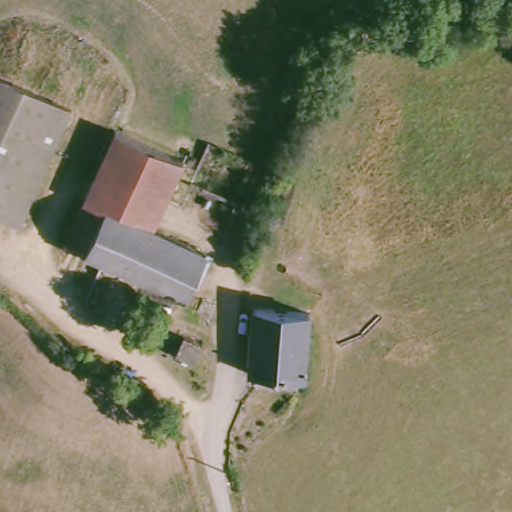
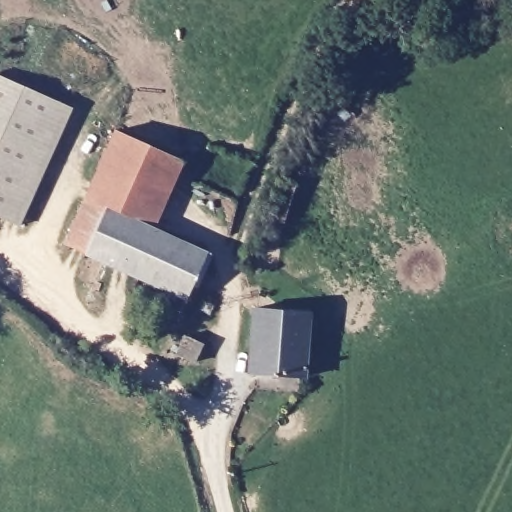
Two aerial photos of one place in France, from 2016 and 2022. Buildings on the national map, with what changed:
unchanged [(25,222),(0,213),(0,76),(68,101),(25,222)]
unchanged [(163,233),(92,207),(117,137),(165,155),(190,167),(163,233)]
unchanged [(302,182),(292,218),(271,212),(280,176),(302,182)]
unchanged [(217,255),(202,303),(75,254),(92,207),(163,233),(217,255)]
unchanged [(315,306),(310,370),(304,370),(304,384),(262,382),(263,367),(254,367),(260,302),(315,306)]
unchanged [(199,365),(179,358),(186,339),(205,347),(199,365)]

